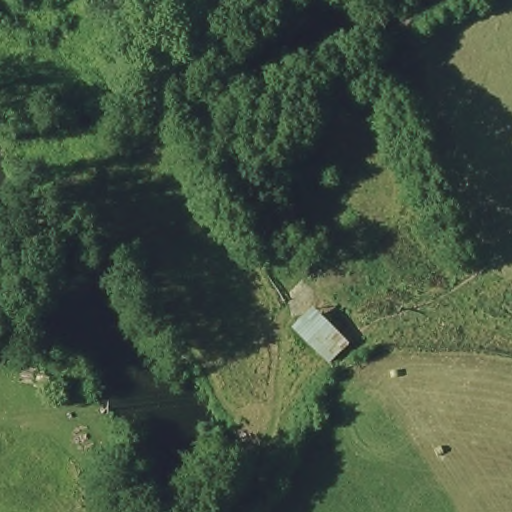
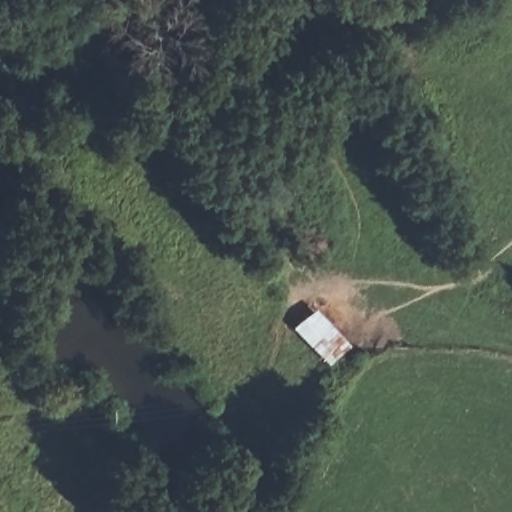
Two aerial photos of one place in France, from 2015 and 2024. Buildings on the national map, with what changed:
unchanged [(81,7),(44,2),(44,0),(83,0),(81,7)]
unchanged [(310,310),(343,342),(325,361),(289,330),(310,310)]

